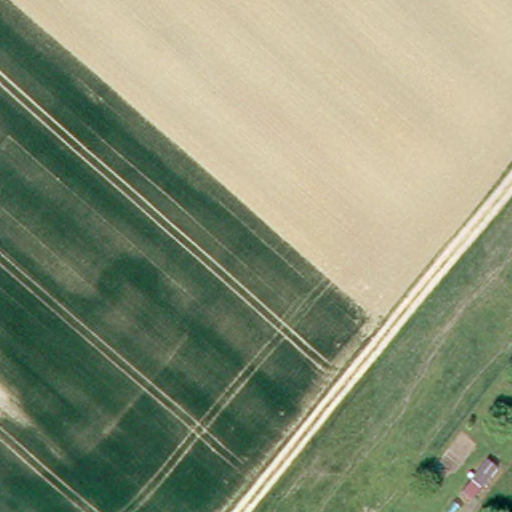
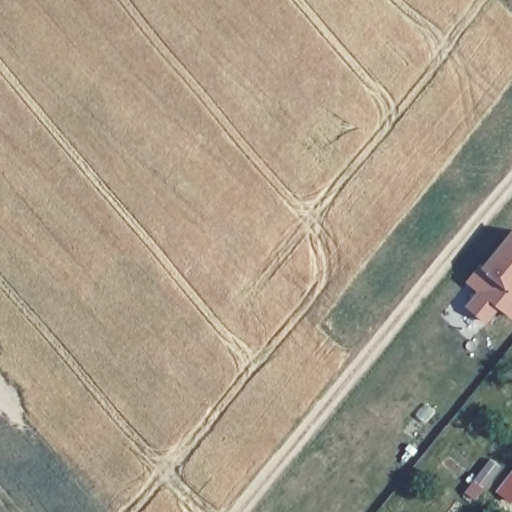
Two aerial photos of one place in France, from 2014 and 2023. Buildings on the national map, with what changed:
new [(479,263),(483,266),(512,230),(512,313),(509,316),(496,305),(483,321),(465,305),(477,290),(465,280),(479,263)]
unchanged [(503,466),(486,488),(477,481),(494,459),(503,466)]

